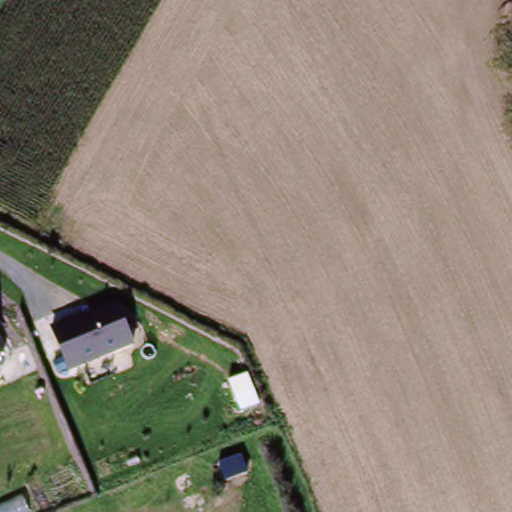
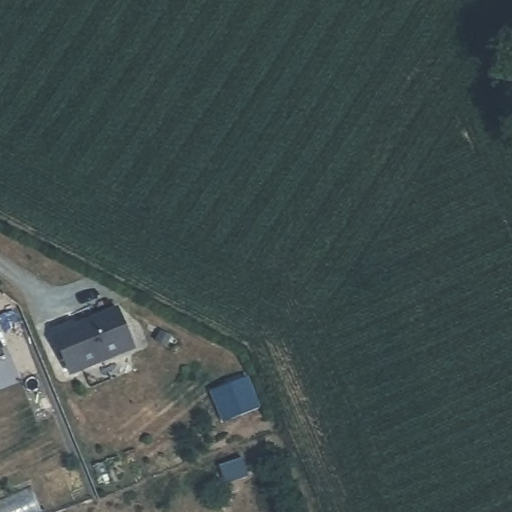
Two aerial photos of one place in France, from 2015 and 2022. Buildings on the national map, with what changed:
unchanged [(69,376),(51,331),(73,321),(75,324),(118,306),(136,348),(69,376)]
unchanged [(6,358),(0,361),(0,345),(6,358)]
new [(249,378),(262,407),(225,423),(211,394),(249,378)]

